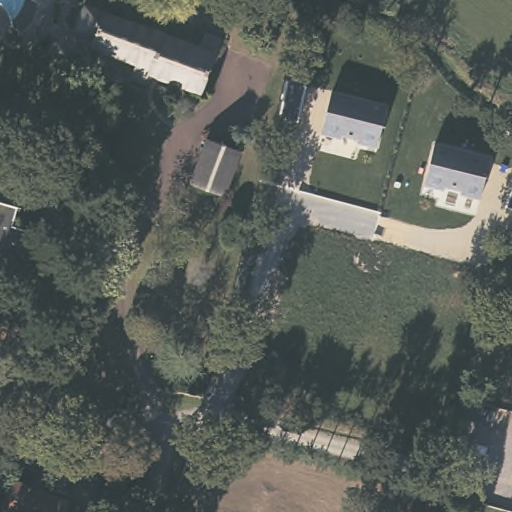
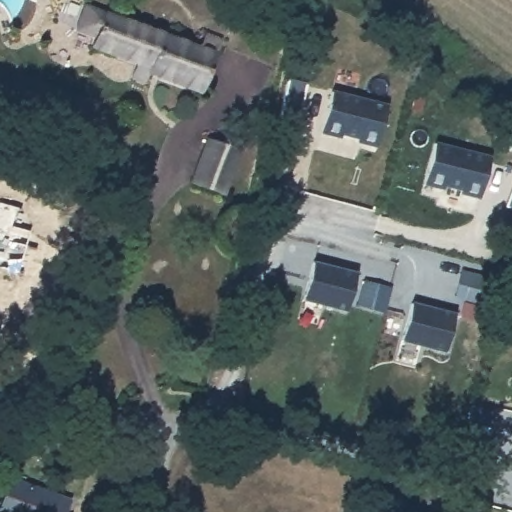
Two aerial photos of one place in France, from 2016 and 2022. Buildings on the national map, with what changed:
unchanged [(204,40),(208,27),(224,33),(205,83),(152,65),(149,73),(136,68),(140,55),(95,38),(99,29),(81,23),(88,0),(204,40)]
unchanged [(322,134),(332,91),(389,105),(379,148),(358,143),(359,138),(343,135),(341,139),(322,134)]
unchanged [(241,153),(225,196),(193,183),(210,141),(241,153)]
unchanged [(491,156),(482,196),(481,199),(462,195),(463,191),(444,187),(444,190),(426,186),(427,182),(436,143),(491,156)]
unchanged [(0,204),(19,208),(15,230),(29,233),(20,273),(0,269),(0,204)]
new [(313,260),(357,273),(347,312),(303,300),(313,260)]
new [(410,301),(456,311),(446,352),(400,340),(410,301)]
unchanged [(67,512),(1,512),(13,481),(71,500),(67,512)]
unchanged [(120,512),(95,512),(99,501),(122,507),(120,512)]

